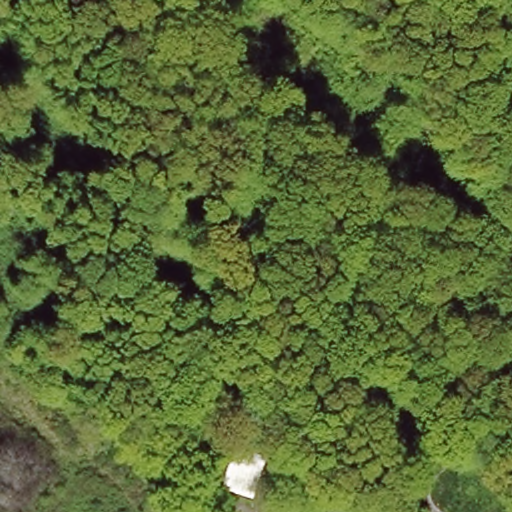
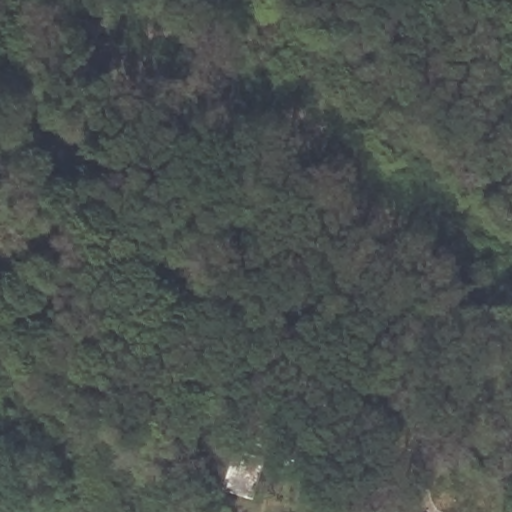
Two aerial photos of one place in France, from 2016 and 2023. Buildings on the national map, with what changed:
unchanged [(267,455),(252,497),(222,488),(236,444),(267,455)]
unchanged [(357,512),(328,512),(345,497),(357,512)]

